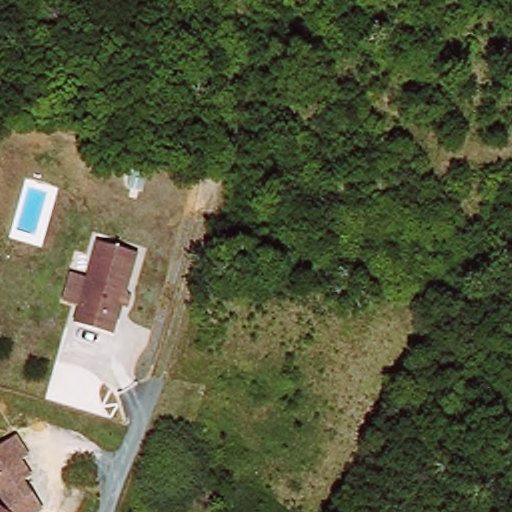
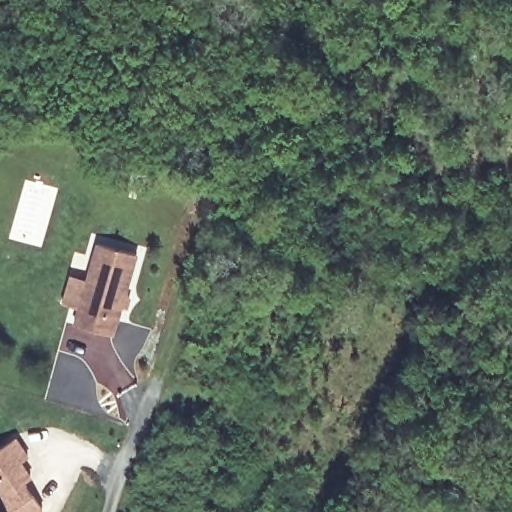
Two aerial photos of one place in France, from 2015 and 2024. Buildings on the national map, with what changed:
unchanged [(142,254),(121,332),(79,321),(84,303),(67,299),(74,271),(91,276),(99,243),(142,254)]
unchanged [(4,501),(0,496),(0,452),(10,444),(24,461),(17,466),(29,483),(23,488),(42,512),(0,512),(0,504),(4,501)]

